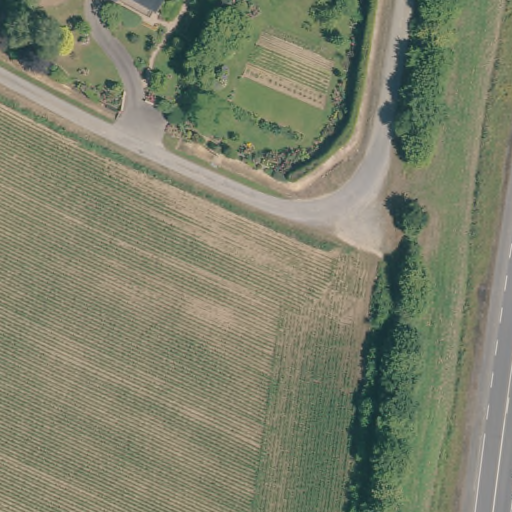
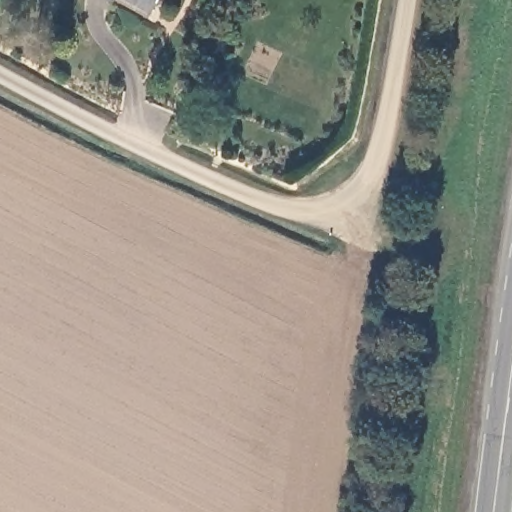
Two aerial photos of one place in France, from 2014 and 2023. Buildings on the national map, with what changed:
unchanged [(129,0),(154,0),(148,11),(129,0)]

